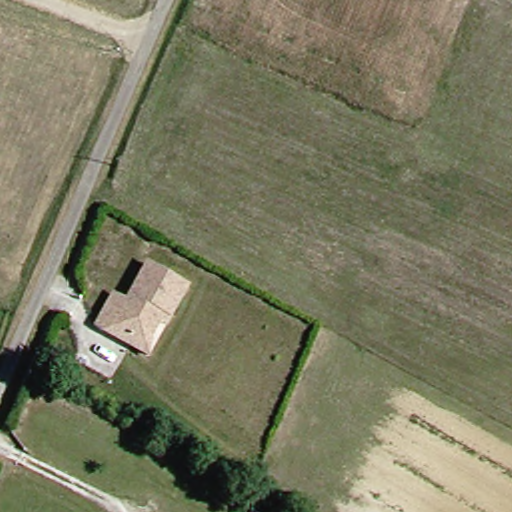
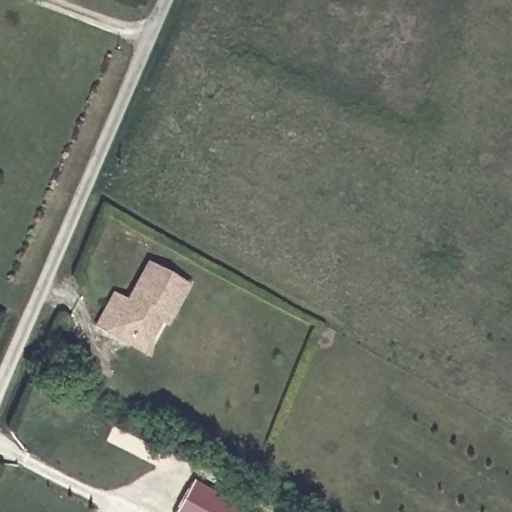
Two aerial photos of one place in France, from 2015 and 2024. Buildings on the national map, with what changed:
unchanged [(107,331),(95,322),(112,293),(125,300),(147,260),(187,283),(169,312),(147,353),(107,331)]
new [(244,512),(175,512),(192,482),(244,512)]

